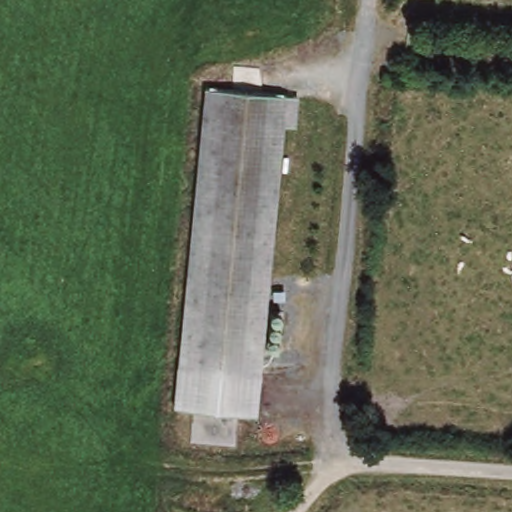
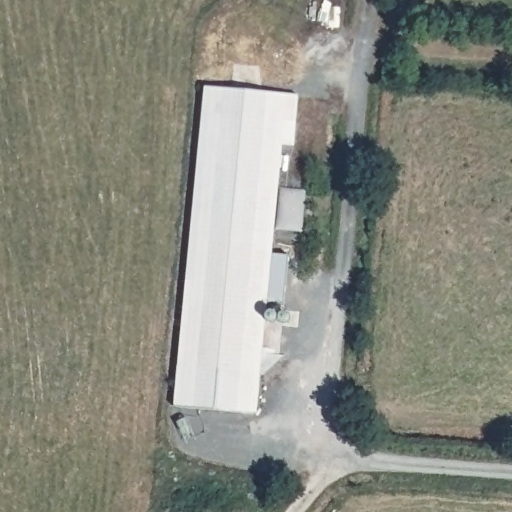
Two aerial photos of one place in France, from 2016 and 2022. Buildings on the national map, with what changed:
unchanged [(302,95),(301,122),(288,123),(273,290),(287,294),(281,351),(268,351),(261,414),(176,405),(205,88),(302,95)]

